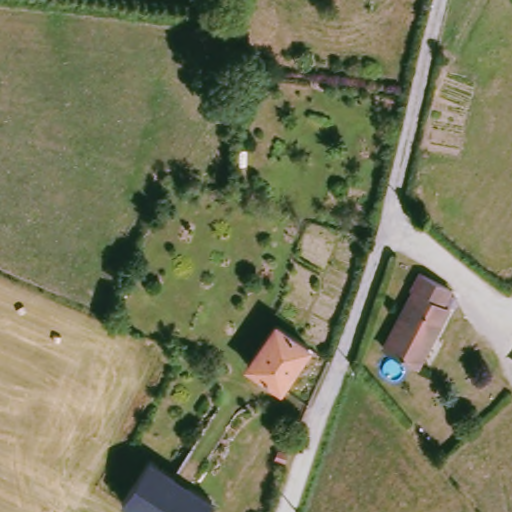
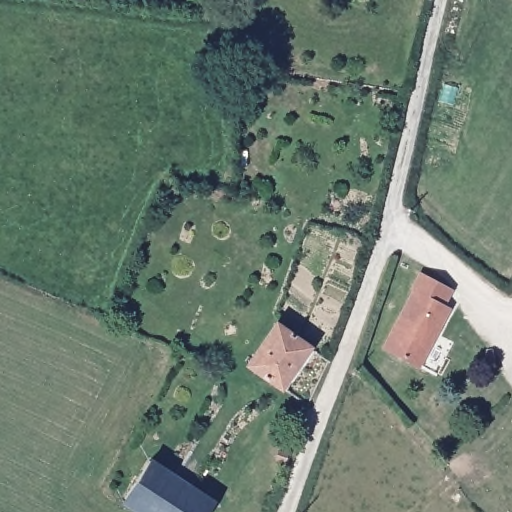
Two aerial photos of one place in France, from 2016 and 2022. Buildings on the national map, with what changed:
unchanged [(455,292),(445,308),(452,312),(417,366),(383,346),(417,291),(413,289),(424,274),(455,292)]
unchanged [(285,389),(250,367),(276,325),(310,346),(285,389)]
unchanged [(158,462),(220,503),(214,512),(141,512),(129,505),(158,462)]

